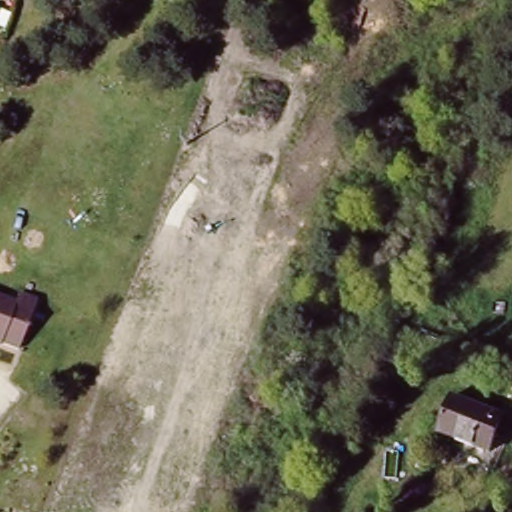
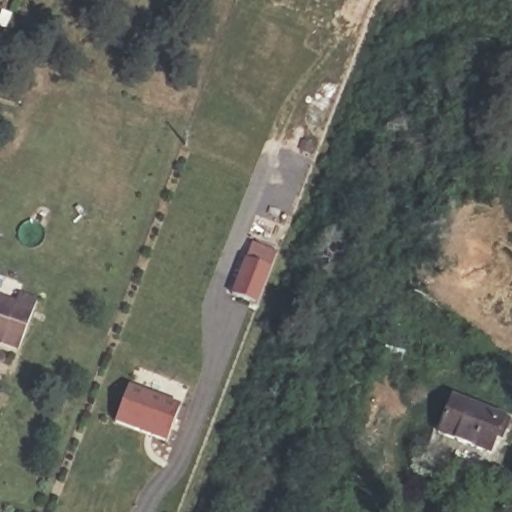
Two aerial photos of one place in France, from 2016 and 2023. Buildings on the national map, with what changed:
new [(273,267),(260,306),(233,297),(247,260),(253,243),(278,251),(273,267)]
unchanged [(13,295),(17,285),(37,292),(17,349),(0,343),(0,291),(13,295)]
new [(168,443),(115,425),(129,386),(181,405),(168,443)]
unchanged [(510,415),(495,452),(442,431),(457,394),(510,415)]

